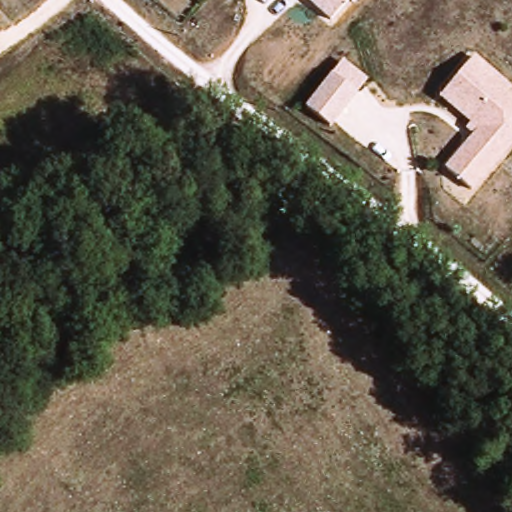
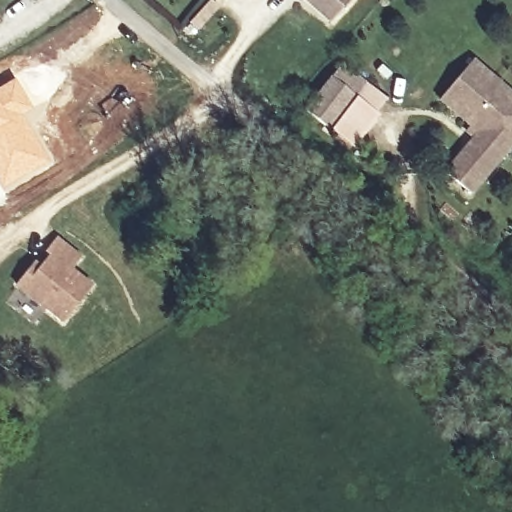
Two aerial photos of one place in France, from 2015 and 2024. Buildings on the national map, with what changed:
unchanged [(308,0),(354,0),(335,22),(308,0)]
unchanged [(467,133),(471,127),(440,100),(477,54),(512,88),(512,149),(472,197),(443,172),(472,135),(467,133)]
unchanged [(342,64),(390,98),(353,149),(303,111),(342,64)]
new [(16,78),(33,109),(24,114),(52,161),(5,192),(0,184),(0,87),(16,78)]
new [(15,285),(56,238),(80,258),(72,269),(92,285),(61,323),(15,285)]

